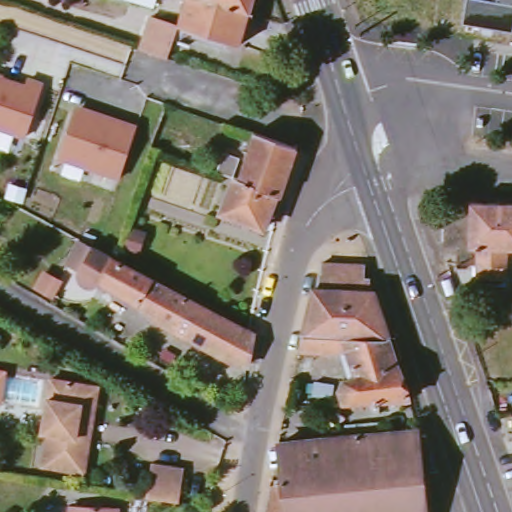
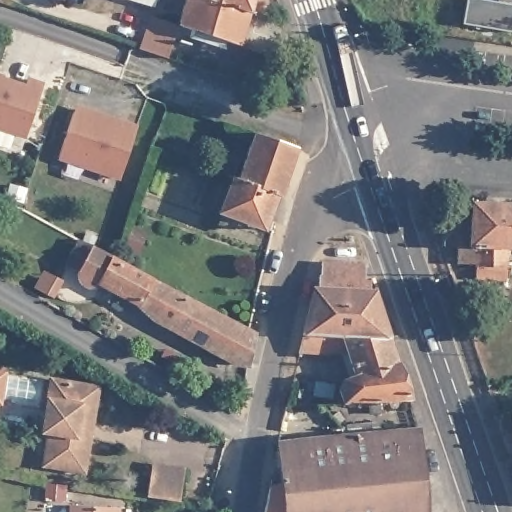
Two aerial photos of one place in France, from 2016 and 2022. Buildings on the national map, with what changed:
unchanged [(154,8),(126,0),(157,0),(154,8)]
unchanged [(250,14),(241,47),(178,27),(186,0),(200,0),(250,14)]
unchanged [(250,14),(200,0),(254,0),(250,14)]
unchanged [(466,25),(469,0),(488,0),(499,2),(500,0),(512,0),(512,32),(466,25)]
unchanged [(151,18),(178,27),(168,60),(140,50),(151,18)]
unchanged [(27,82),(43,87),(25,140),(0,131),(0,81),(24,89),(27,82)]
unchanged [(133,139),(118,182),(58,161),(73,116),(118,131),(120,125),(136,131),(133,139)]
unchanged [(282,202),(271,228),(246,219),(243,227),(224,220),(238,187),(221,182),(228,163),(245,169),(240,183),(246,184),(261,140),(303,154),(286,203),(282,202)]
unchanged [(20,204),(5,199),(9,188),(23,193),(20,204)]
unchanged [(511,250),(509,267),(459,267),(459,249),(447,249),(449,203),(512,204),(512,250),(511,250)]
unchanged [(148,233),(141,254),(125,249),(133,228),(148,233)]
unchanged [(94,292),(88,289),(85,284),(85,280),(86,275),(76,269),(89,244),(95,247),(99,250),(114,257),(119,259),(249,329),(254,331),(248,366),(238,367),(156,322),(141,304),(111,289),(106,292),(100,293),(94,292)]
unchanged [(366,294),(371,294),(385,339),(299,338),(310,290),(314,291),(313,278),(316,278),(316,265),(361,268),(361,280),(367,280),(366,294)]
unchanged [(49,281),(56,285),(48,299),(41,295),(49,281)]
unchanged [(299,338),(385,339),(391,357),(406,403),(375,404),(376,415),(364,415),(364,405),(341,406),(335,392),(341,383),(354,379),(346,352),(328,354),(295,352),(299,338)]
unchanged [(1,378),(0,377),(0,372),(2,373),(1,378)]
unchanged [(49,435),(42,434),(50,380),(84,385),(98,387),(90,441),(85,473),(44,469),(49,435)]
unchanged [(507,410),(512,410),(512,431),(507,410)]
unchanged [(263,491),(265,484),(278,480),(275,438),(328,434),(328,426),(336,425),(338,429),(339,433),(415,427),(423,512),(260,512),(261,505),(263,491)]
unchanged [(148,461),(181,465),(176,497),(143,492),(148,461)]
unchanged [(111,509),(118,509),(118,512),(69,512),(71,502),(111,509)]

